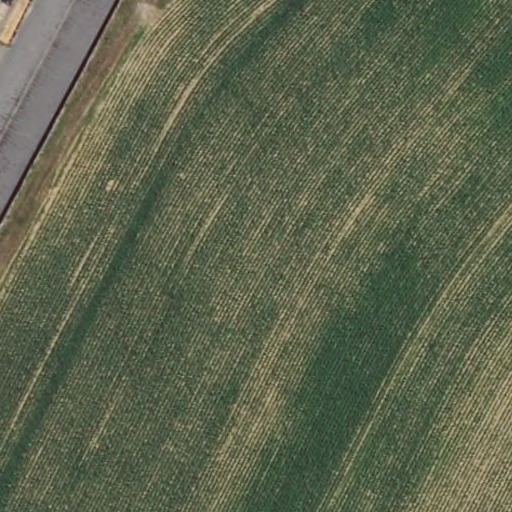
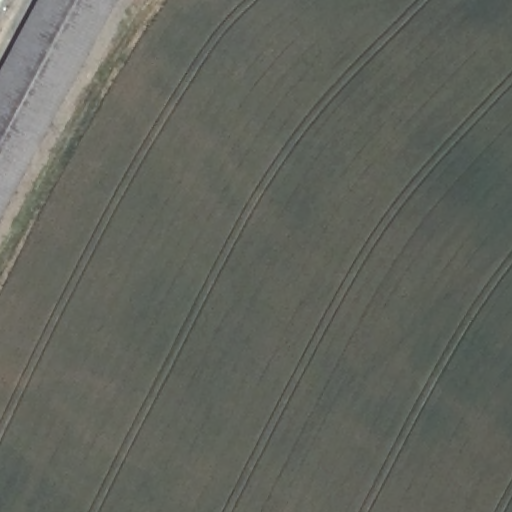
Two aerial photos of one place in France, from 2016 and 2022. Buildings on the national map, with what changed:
unchanged [(0,224),(0,97),(52,0),(120,0),(0,224)]

